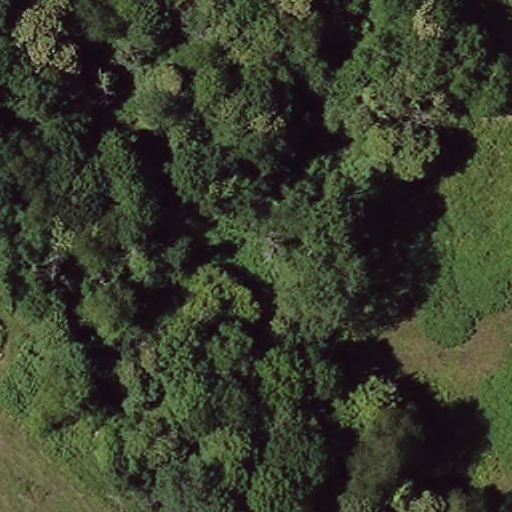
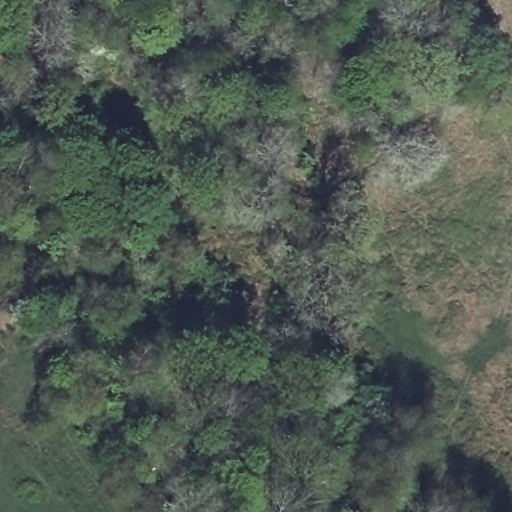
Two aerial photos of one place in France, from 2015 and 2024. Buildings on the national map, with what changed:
[]

